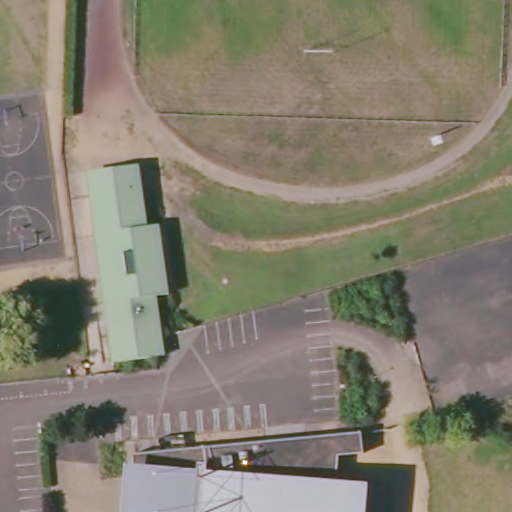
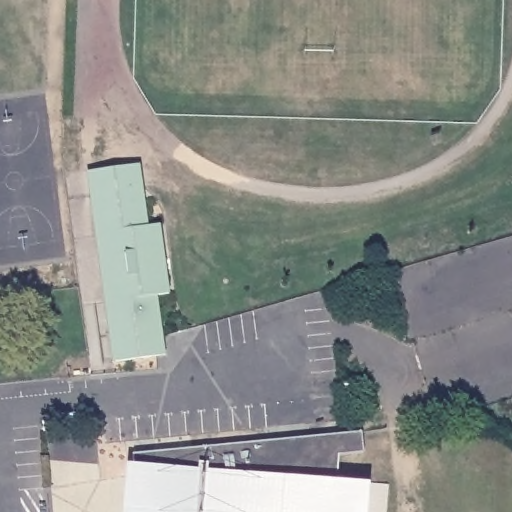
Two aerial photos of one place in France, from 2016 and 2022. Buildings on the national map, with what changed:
unchanged [(113,302),(104,235),(96,236),(91,197),(89,180),(140,173),(143,189),(148,227),(160,226),(170,295),(158,297),(165,349),(166,356),(123,362),(115,363),(106,303),(113,302)]
unchanged [(364,455),(340,457),(339,485),(372,487),(370,512),(123,512),(126,467),(135,467),(133,456),(362,435),(364,455)]

